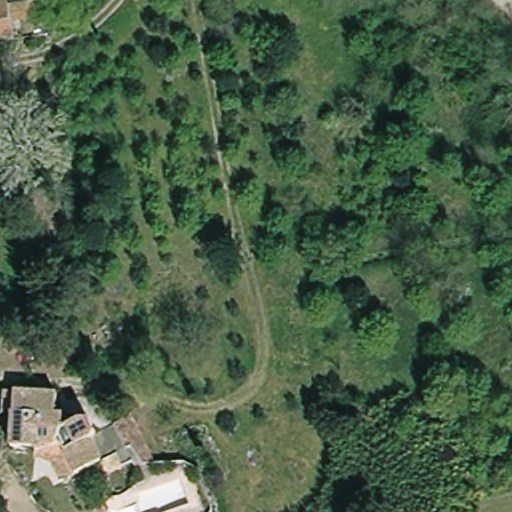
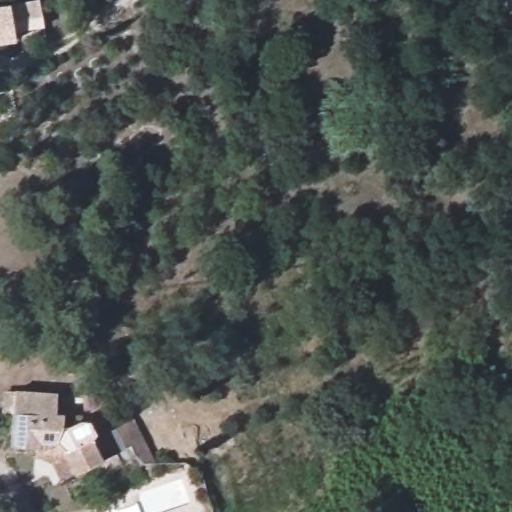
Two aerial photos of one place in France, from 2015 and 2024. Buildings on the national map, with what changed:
unchanged [(14,39),(0,41),(0,7),(42,1),(45,21),(12,25),(14,39)]
unchanged [(56,393),(55,413),(64,415),(64,427),(73,427),(74,422),(78,419),(83,418),(87,420),(92,425),(94,430),(94,436),(92,440),(106,460),(85,472),(59,440),(39,439),(38,450),(11,446),(16,390),(56,393)]

